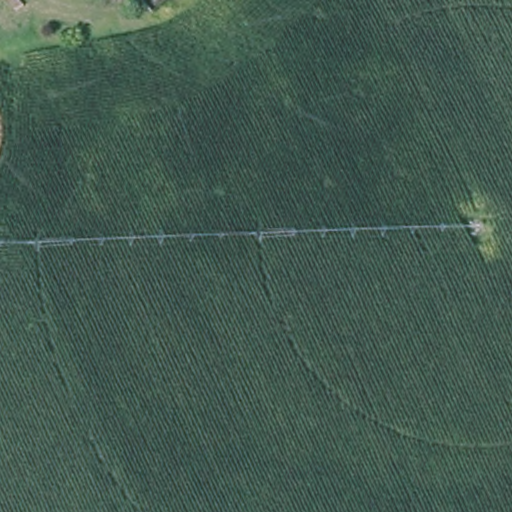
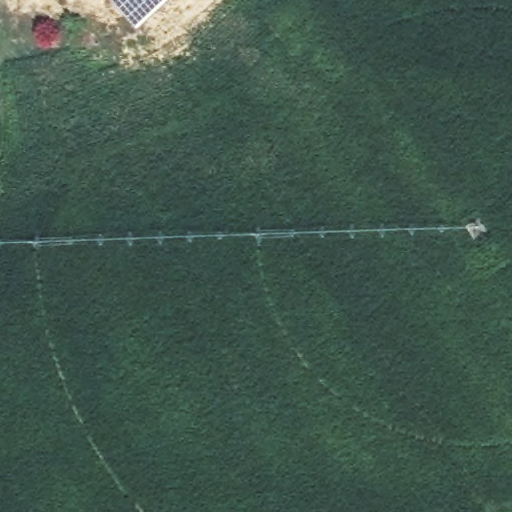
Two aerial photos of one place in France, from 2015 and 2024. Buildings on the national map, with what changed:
new [(137,32),(108,0),(171,0),(137,32)]

